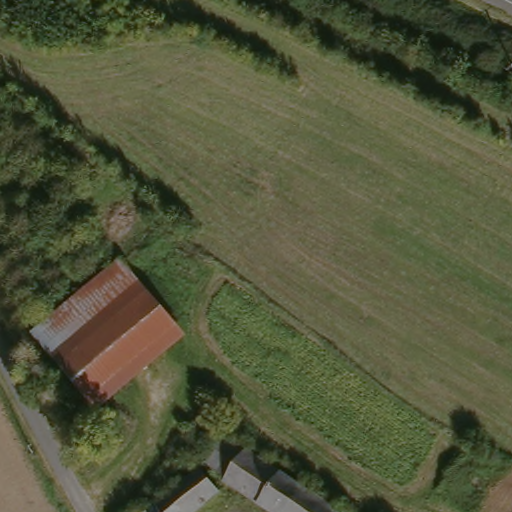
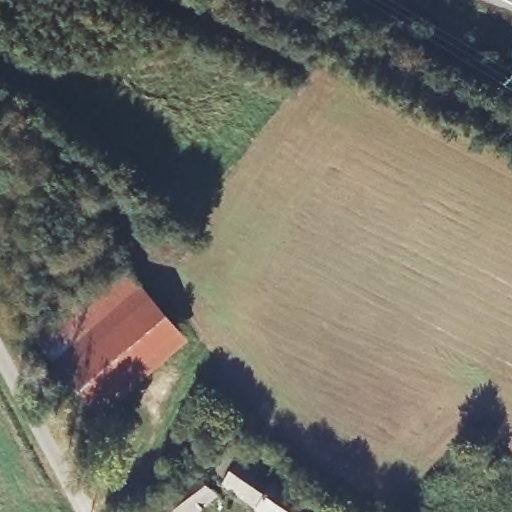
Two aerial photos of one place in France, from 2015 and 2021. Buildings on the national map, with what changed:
unchanged [(124,259),(186,332),(95,407),(31,333),(124,259)]
unchanged [(237,491),(212,463),(230,442),(342,512),(270,512),(237,491)]
unchanged [(160,506),(201,470),(220,491),(194,512),(150,512),(160,506)]

